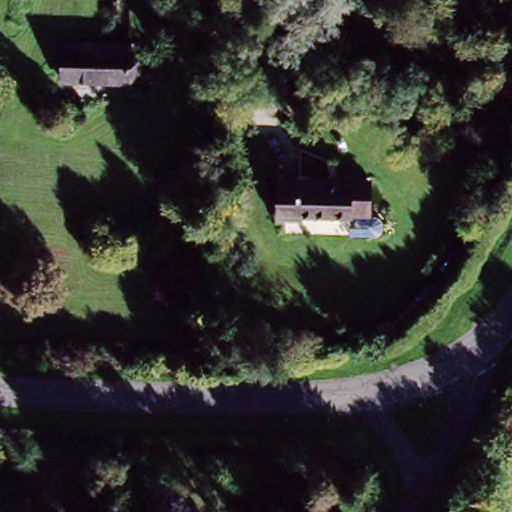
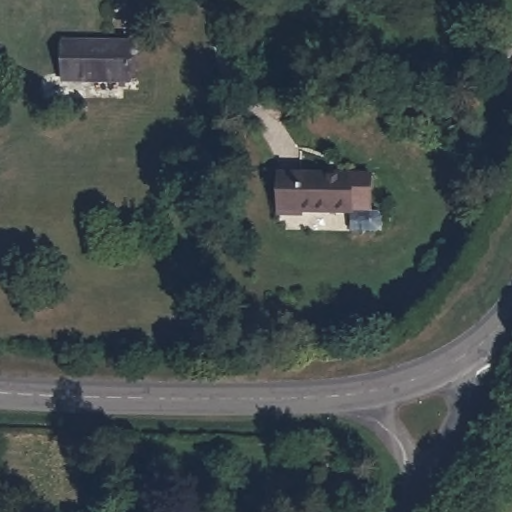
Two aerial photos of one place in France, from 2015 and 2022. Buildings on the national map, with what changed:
unchanged [(129,86),(62,85),(62,47),(130,48),(129,86)]
unchanged [(512,82),(507,80),(512,71),(512,82)]
unchanged [(352,216),(279,215),(280,179),(370,181),(370,208),(370,217),(352,216)]

